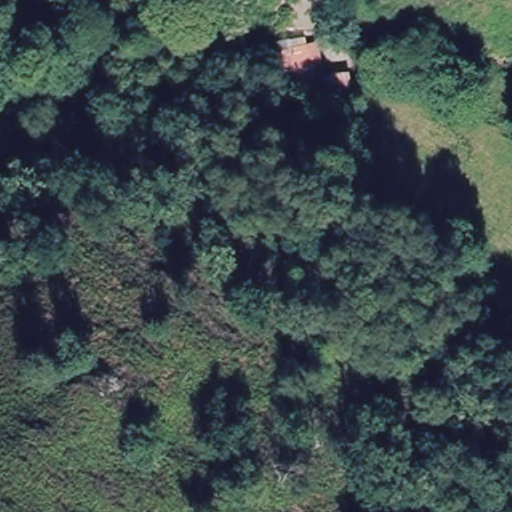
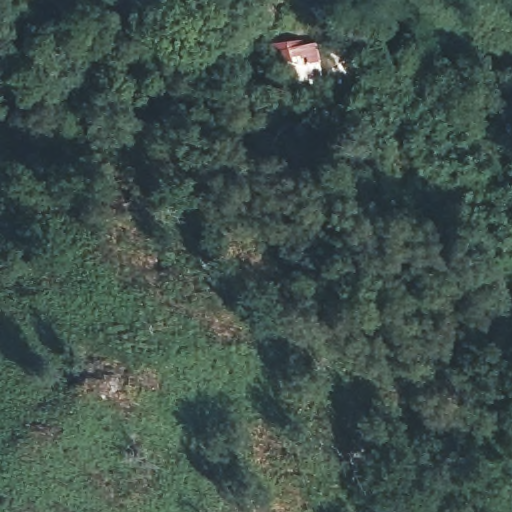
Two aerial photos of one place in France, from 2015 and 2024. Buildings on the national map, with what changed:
unchanged [(334,92),(275,99),(264,54),(321,46),(334,92)]

